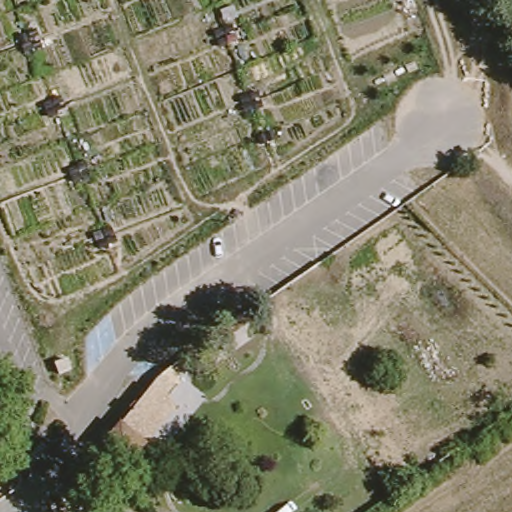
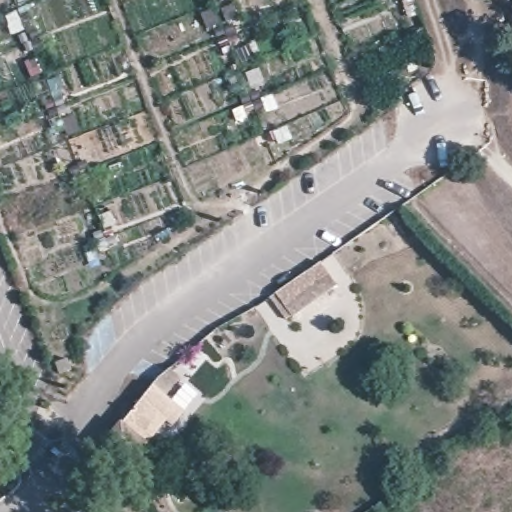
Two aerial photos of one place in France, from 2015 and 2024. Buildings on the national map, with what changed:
new [(291,318),(274,294),(320,262),(337,286),(291,318)]
unchanged [(171,417),(122,465),(101,448),(162,386),(167,381),(178,395),(172,400),(164,408),(171,417)]

